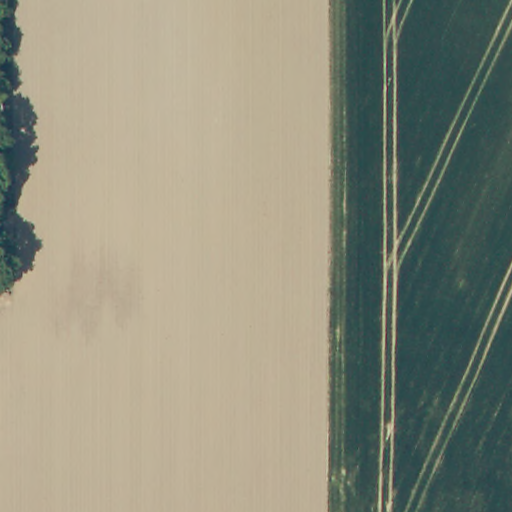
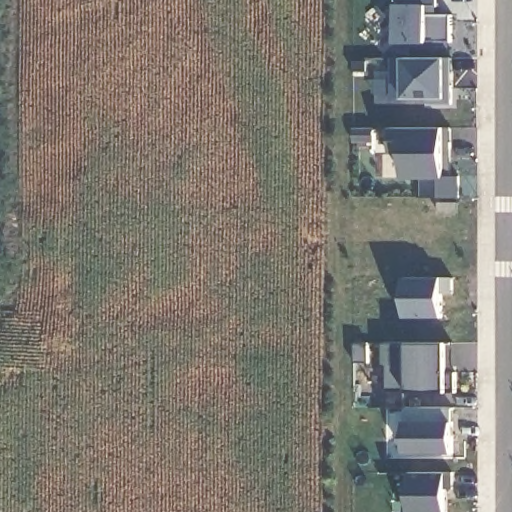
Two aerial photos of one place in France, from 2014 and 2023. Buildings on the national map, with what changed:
new [(438,15),(451,15),(450,41),(427,42),(397,42),(396,5),(400,5),(400,0),(438,0),(438,15)]
new [(392,57),(404,57),(446,58),(445,97),(404,96),(391,96),(392,57)]
new [(392,127),(444,127),(444,176),(459,176),(459,197),(421,197),(421,177),(403,176),(404,152),(392,152),(392,127)]
new [(404,277),(441,278),(441,317),(404,317),(404,277)]
new [(386,367),(381,367),(381,342),(407,342),(445,341),(445,392),(407,392),(386,392),(386,367)]
new [(405,407),(451,407),(451,421),(451,454),(405,453),(405,421),(405,407)]
new [(452,472),(452,487),(446,488),(446,512),(409,512),(409,473),(452,472)]

